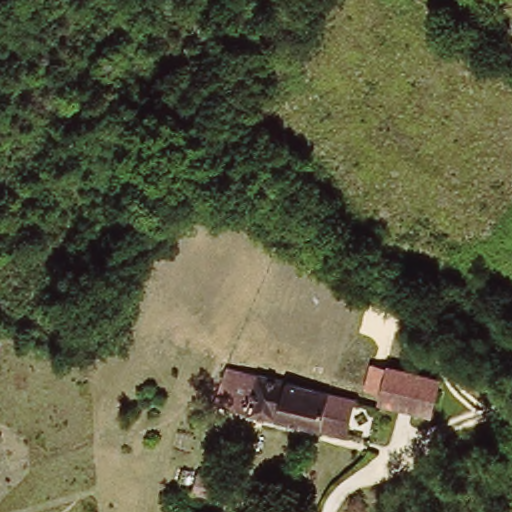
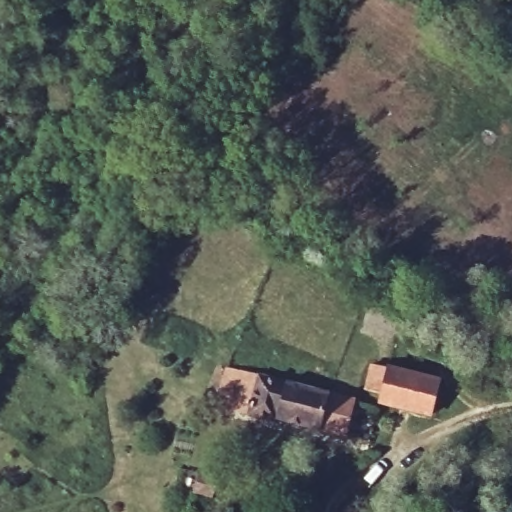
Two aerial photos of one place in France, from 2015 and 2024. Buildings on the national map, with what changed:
unchanged [(230,366),(359,405),(348,443),(284,424),(282,430),(220,413),(230,366)]
unchanged [(390,372),(444,386),(434,421),(382,407),(390,372)]

